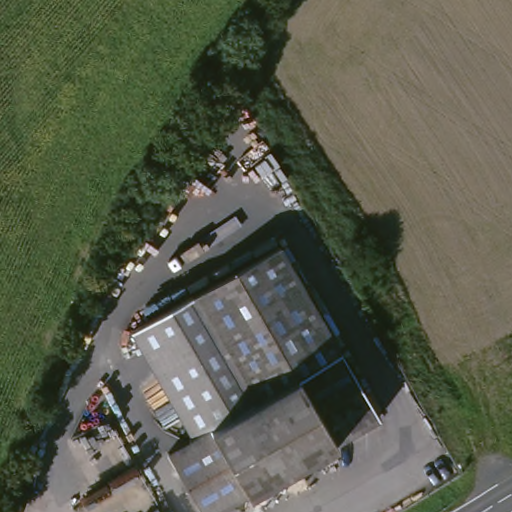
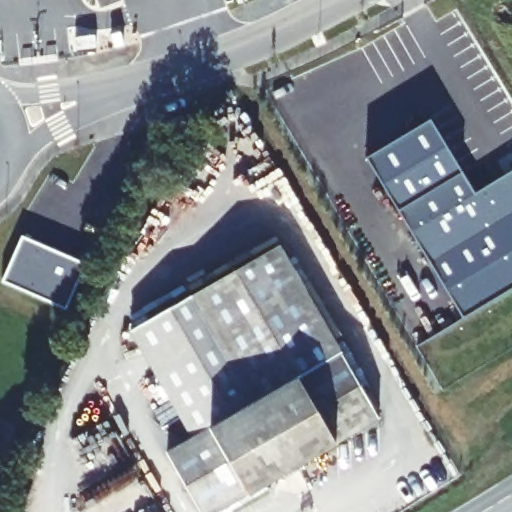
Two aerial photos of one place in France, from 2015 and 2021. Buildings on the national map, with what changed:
new [(96,35),(97,50),(77,52),(76,38),(96,35)]
new [(506,175),(512,171),(512,290),(463,319),(366,157),(430,119),(475,193),(506,175)]
new [(22,237),(87,265),(66,311),(2,283),(22,237)]
unchanged [(199,512),(166,454),(192,439),(131,334),(192,299),(276,250),(376,422),(220,512),(199,512)]

